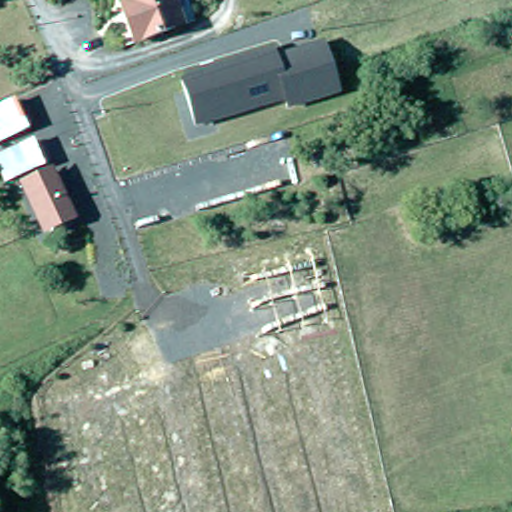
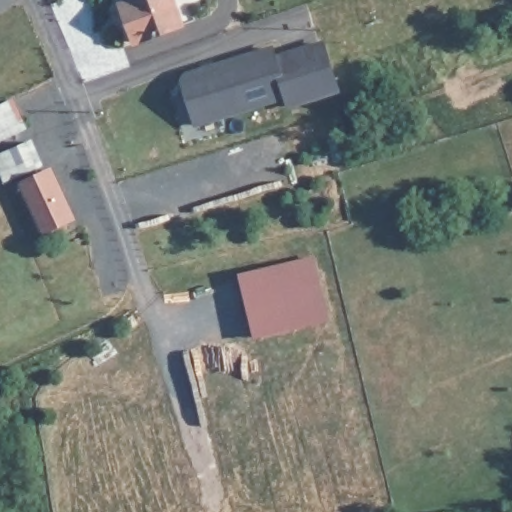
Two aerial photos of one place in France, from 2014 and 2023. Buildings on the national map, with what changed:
unchanged [(116,0),(178,0),(185,18),(186,20),(171,25),(126,43),(125,39),(117,19),(111,3),(117,1),(116,0)]
unchanged [(268,43),(274,56),(322,40),(340,91),(290,109),(286,96),(195,127),(179,73),(268,43)]
unchanged [(22,129),(0,139),(0,108),(11,103),(22,129)]
unchanged [(33,155),(35,159),(0,175),(0,146),(24,135),(33,155)]
unchanged [(32,212),(19,180),(43,169),(57,199),(62,209),(37,220),(32,212)]
new [(329,319),(254,337),(240,273),(315,254),(329,319)]

